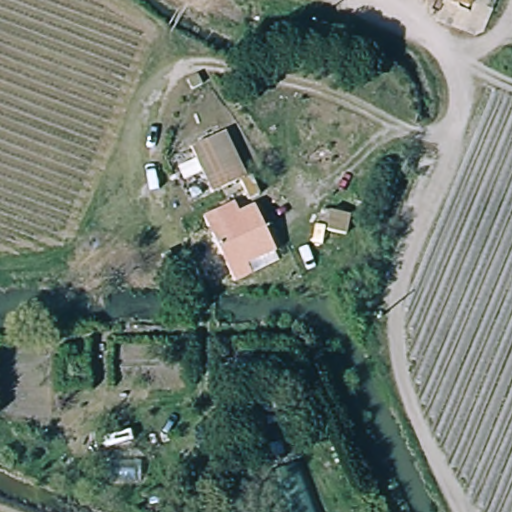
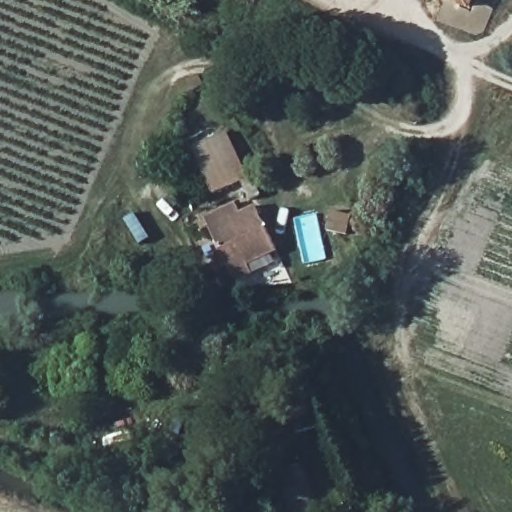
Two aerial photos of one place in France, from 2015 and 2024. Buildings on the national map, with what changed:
unchanged [(461,0),(473,0),(471,4),(461,0)]
unchanged [(242,179),(217,191),(197,149),(221,138),(242,179)]
unchanged [(240,212),(259,204),(282,249),(248,264),(251,270),(234,278),(205,214),(235,201),(240,212)]
unchanged [(350,215),(348,235),(328,231),(329,225),(317,223),(319,210),(350,215)]

